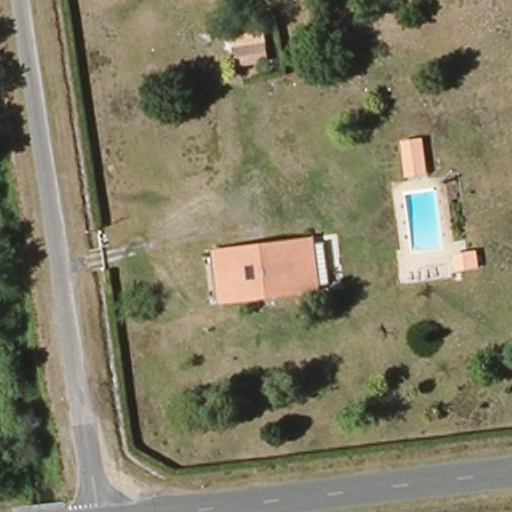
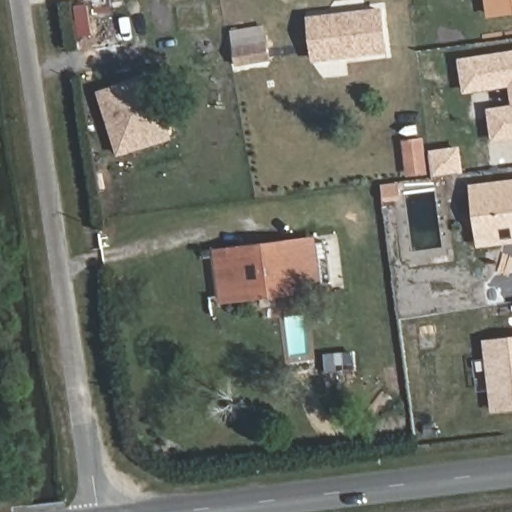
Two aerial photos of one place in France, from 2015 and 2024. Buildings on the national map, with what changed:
new [(512,0),(512,14),(489,17),(486,0),(512,0)]
new [(383,7),(389,53),(314,62),(308,16),(383,7)]
new [(264,25),(269,61),(237,67),(230,30),(264,25)]
new [(459,58),(512,49),(512,104),(511,90),(467,95),(459,58)]
new [(98,91),(146,76),(169,139),(119,154),(98,91)]
new [(492,140),(487,108),(512,104),(512,137),(492,140)]
unchanged [(424,177),(399,180),(396,147),(421,145),(424,177)]
new [(459,146),(464,174),(437,176),(433,150),(459,146)]
new [(512,179),(512,242),(479,247),(471,184),(512,179)]
unchanged [(255,254),(301,249),(310,247),(316,288),(306,290),(261,295),(255,254)]
unchanged [(208,260),(218,258),(255,254),(261,295),(223,300),(214,301),(208,260)]
new [(492,412),(489,391),(478,392),(474,360),(486,358),(484,340),(512,336),(512,410),(492,412)]

